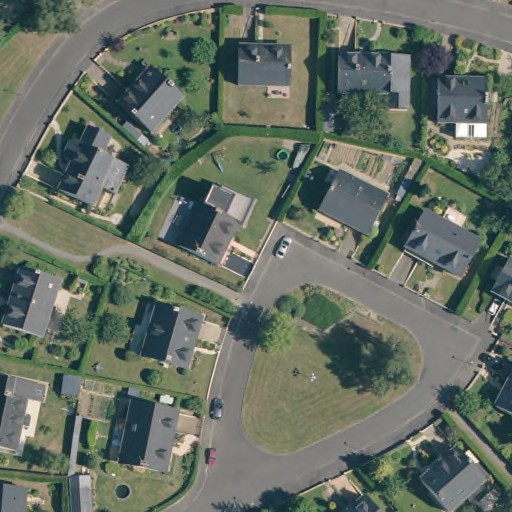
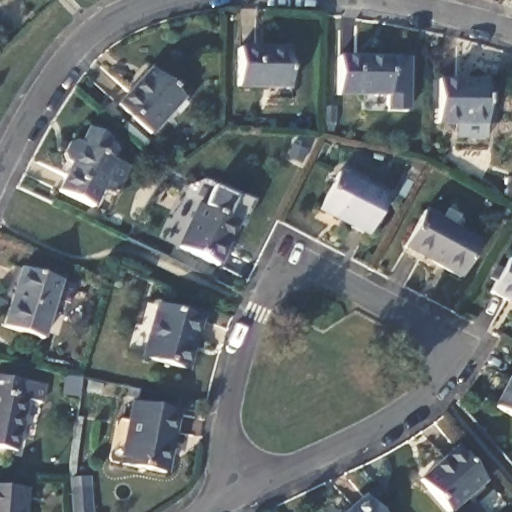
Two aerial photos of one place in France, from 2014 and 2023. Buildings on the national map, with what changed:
unchanged [(292,47),(291,84),(241,84),(242,46),(292,47)]
unchanged [(195,87),(152,134),(119,105),(161,57),(195,87)]
unchanged [(406,59),(406,111),(388,111),(388,96),(336,96),(337,59),(406,59)]
unchanged [(479,75),(479,132),(449,132),(449,118),(431,118),(431,75),(479,75)]
unchanged [(328,116),(319,116),(320,101),(328,102),(328,116)]
unchanged [(103,154),(116,160),(129,167),(116,193),(103,187),(93,207),(59,191),(72,163),(67,161),(64,154),(70,143),(76,141),(82,144),(90,128),(111,138),(103,154)]
unchanged [(135,130),(147,139),(141,146),(130,136),(135,130)]
unchanged [(508,167),(509,185),(496,186),(495,168),(508,167)]
unchanged [(387,196),(369,233),(320,210),(338,173),(387,196)]
unchanged [(236,226),(216,268),(178,250),(199,208),(236,226)]
unchanged [(484,238),(465,274),(408,244),(426,209),(484,238)]
unchanged [(62,273),(45,330),(7,319),(24,262),(62,273)]
unchanged [(485,296),(490,285),(484,282),(489,272),(496,275),(503,262),(512,267),(512,309),(485,296)]
unchanged [(199,313),(185,364),(143,353),(156,302),(199,313)]
unchanged [(496,400),(507,379),(503,377),(500,370),(506,356),(512,355),(512,408),(496,400)]
unchanged [(0,369),(26,374),(23,390),(29,392),(18,444),(0,441),(0,369)]
unchanged [(166,469),(113,459),(121,416),(130,418),(134,400),(178,408),(166,469)]
unchanged [(474,458),(483,467),(478,472),(480,474),(445,508),(415,476),(450,443),(469,463),(474,458)]
unchanged [(83,483),(85,512),(65,512),(63,485),(83,483)]
unchanged [(28,512),(0,512),(0,489),(29,491),(28,512)]
unchanged [(339,512),(365,489),(386,512),(339,512)]

